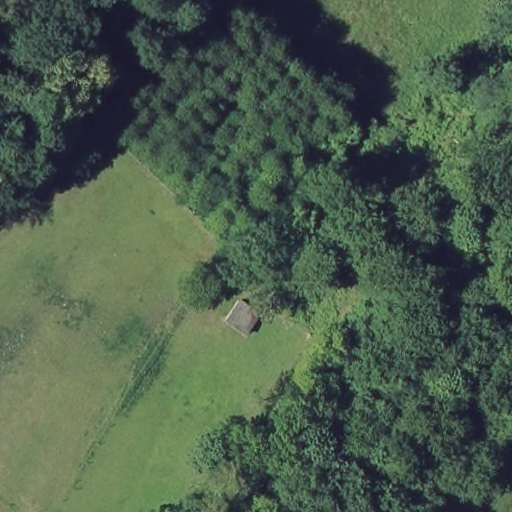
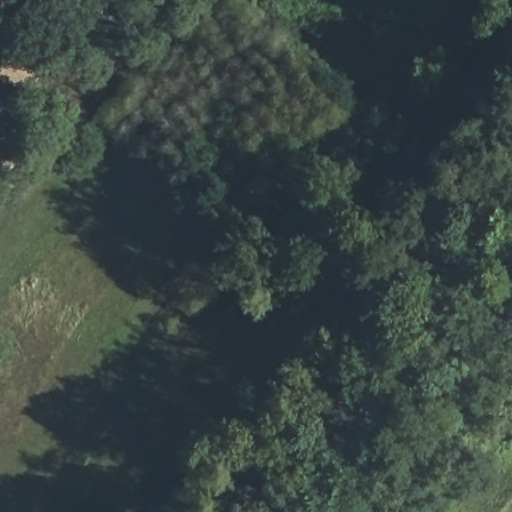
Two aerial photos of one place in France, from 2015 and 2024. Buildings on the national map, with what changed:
[]

